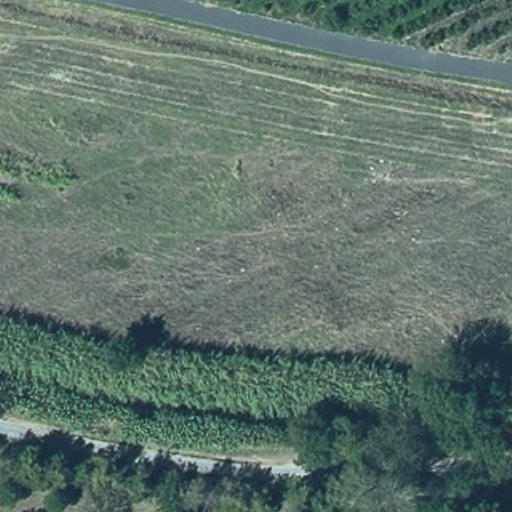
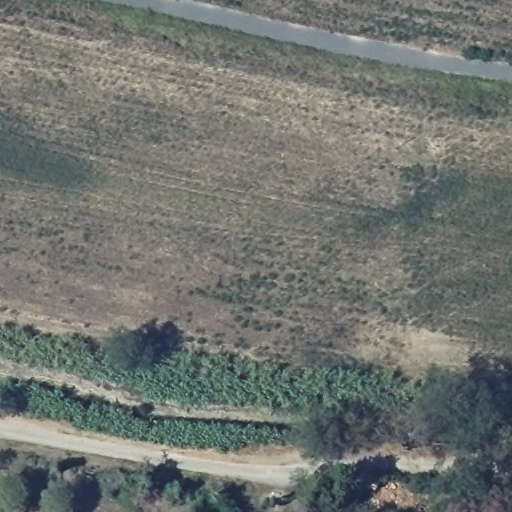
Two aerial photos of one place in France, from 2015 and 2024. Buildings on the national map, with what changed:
unchanged [(485,391),(477,415),(461,415),(462,395),(485,391)]

